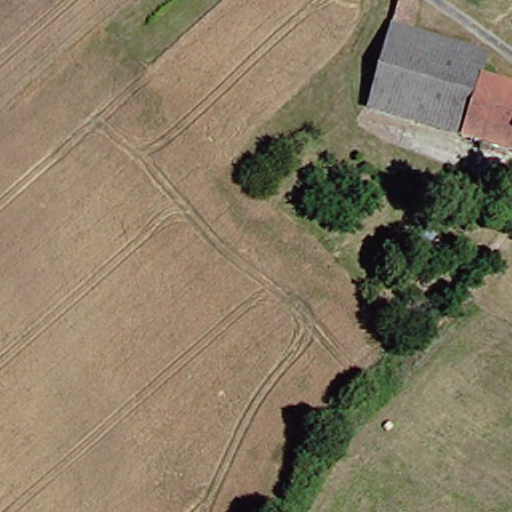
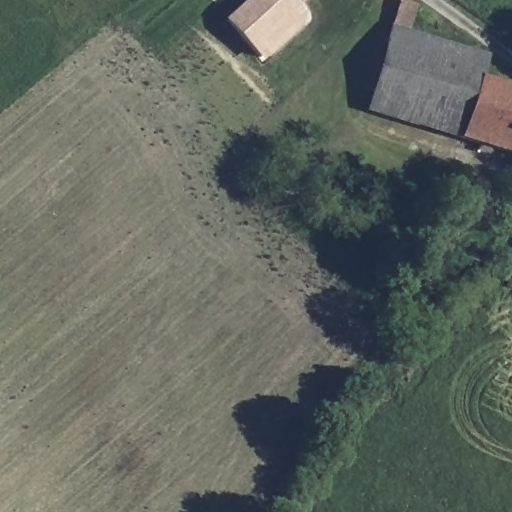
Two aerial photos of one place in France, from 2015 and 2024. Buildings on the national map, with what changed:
new [(248,0),(280,0),(303,26),(262,64),(224,22),(248,0)]
unchanged [(391,1),(412,8),(406,34),(482,56),(477,81),(512,86),(512,160),(450,141),(413,130),(361,117),(391,1)]

